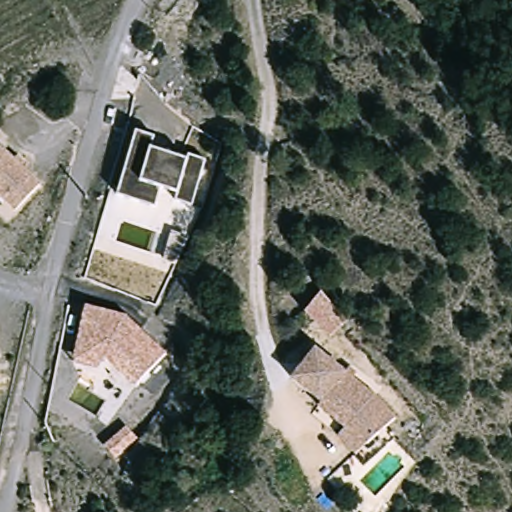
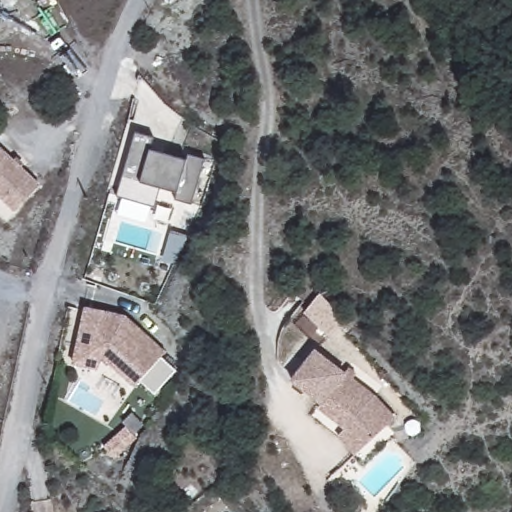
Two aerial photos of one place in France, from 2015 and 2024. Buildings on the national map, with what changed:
unchanged [(154,151),(150,163),(187,177),(188,171),(206,177),(191,222),(173,215),(175,208),(159,202),(152,220),(112,205),(134,143),(154,151)]
unchanged [(18,209),(0,197),(0,155),(39,182),(18,209)]
unchanged [(305,312),(319,292),(338,311),(349,321),(336,337),(325,328),(305,312)]
unchanged [(81,372),(84,360),(95,318),(136,330),(178,370),(146,400),(113,369),(109,368),(106,380),(81,372)]
unchanged [(338,433),(345,427),(317,402),(320,399),(290,374),(314,346),(344,370),(348,365),(356,372),(353,377),(375,395),(396,418),(368,443),(356,452),(338,433)]
unchanged [(152,441),(156,455),(126,461),(122,446),(152,441)]

